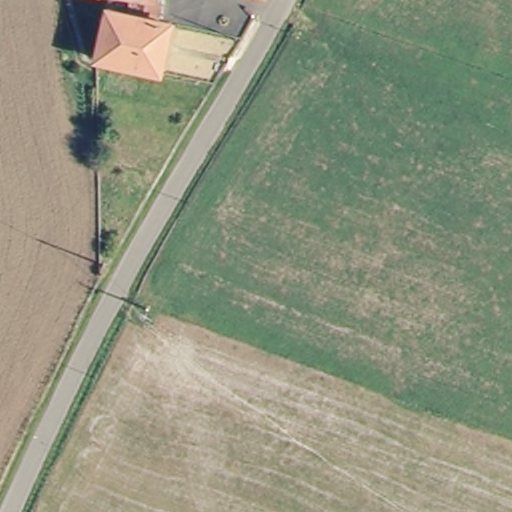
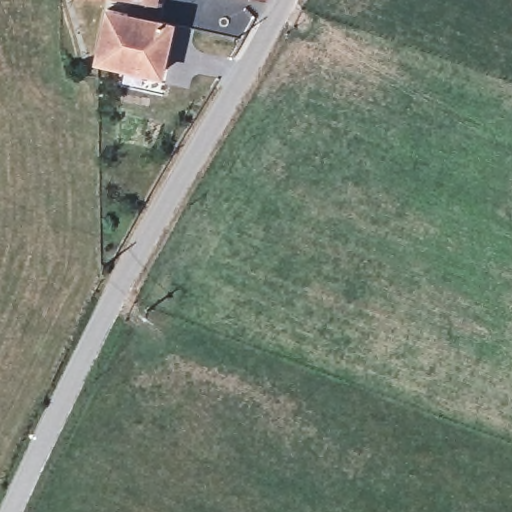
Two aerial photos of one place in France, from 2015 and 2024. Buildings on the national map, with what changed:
unchanged [(182,21),(177,47),(174,72),(113,64),(119,14),(137,17),(140,0),(168,0),(166,19),(182,21)]

